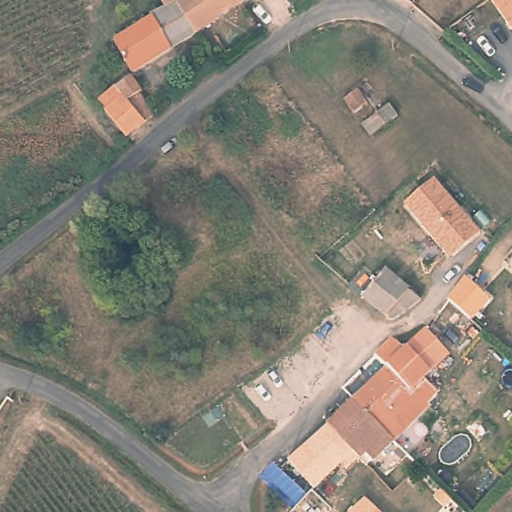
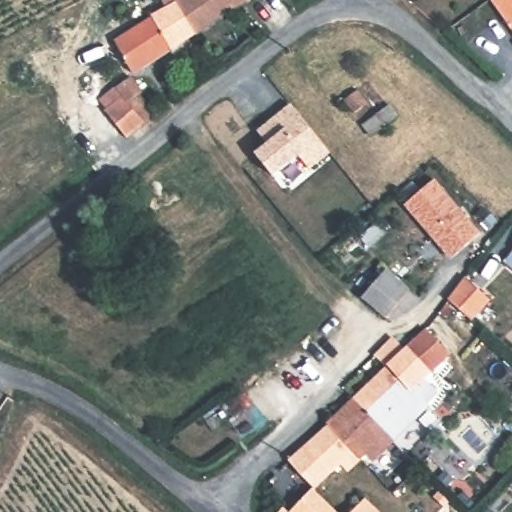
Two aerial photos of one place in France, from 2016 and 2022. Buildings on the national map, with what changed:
unchanged [(171,0),(177,0),(197,31),(173,47),(153,14),(152,11),(166,2),(171,0)]
unchanged [(166,2),(165,0),(171,0),(166,2)]
unchanged [(197,31),(177,0),(204,0),(216,18),(197,31)]
unchanged [(216,18),(204,0),(240,0),(241,1),(216,18)]
unchanged [(241,1),(240,0),(243,0),(241,1)]
unchanged [(494,0),(512,0),(512,26),(494,0)]
unchanged [(135,70),(121,47),(115,36),(153,14),(173,47),(135,70)]
unchanged [(106,104),(121,92),(116,83),(130,74),(141,86),(138,88),(144,98),(148,96),(158,111),(128,133),(106,104)]
unchanged [(367,104),(353,114),(343,101),(356,91),(367,104)]
new [(266,141),(256,129),(290,102),(329,150),(309,167),(298,153),(272,174),(254,152),(266,141)]
unchanged [(390,117),(371,133),(363,122),(375,113),(386,104),(394,114),(390,117)]
unchanged [(481,235),(451,261),(403,206),(432,180),(481,235)]
unchanged [(510,252),(512,250),(512,253),(510,252)]
unchanged [(394,321),(363,294),(384,272),(401,286),(406,281),(410,285),(420,294),(394,321)]
new [(468,274),(492,298),(474,318),(451,297),(468,274)]
unchanged [(349,396),(350,396),(362,387),(384,365),(372,353),(387,337),(401,348),(402,347),(424,326),(447,348),(426,370),(419,377),(434,391),(423,402),(426,405),(391,440),(373,459),(367,453),(360,459),(352,451),(325,424),(324,422),(349,396)]
unchanged [(330,474),(313,488),(287,460),(325,424),(352,451),(345,459),(330,474)]
unchanged [(380,512),(349,512),(363,496),(380,512)]

